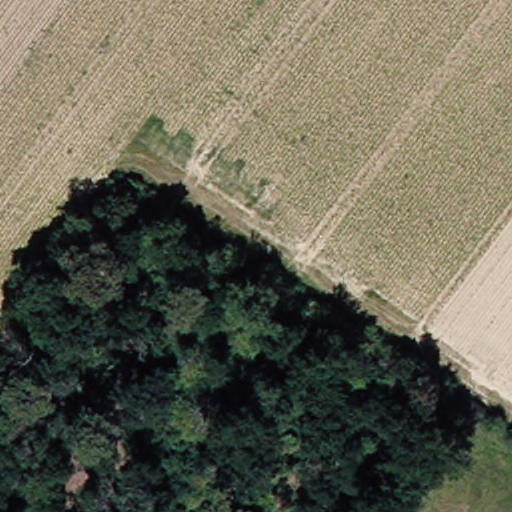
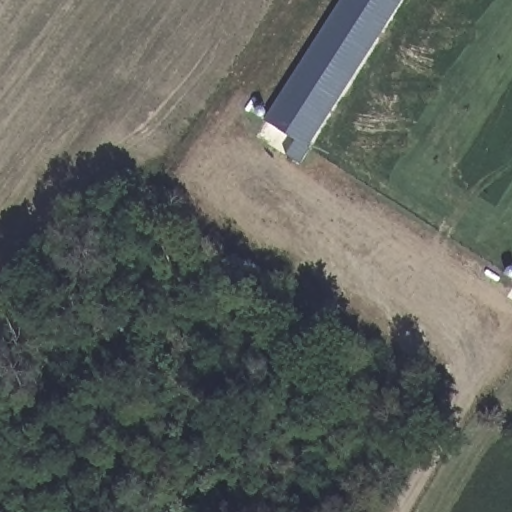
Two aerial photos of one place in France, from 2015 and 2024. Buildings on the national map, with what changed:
new [(403,0),(308,149),(264,121),(341,0),(403,0)]

